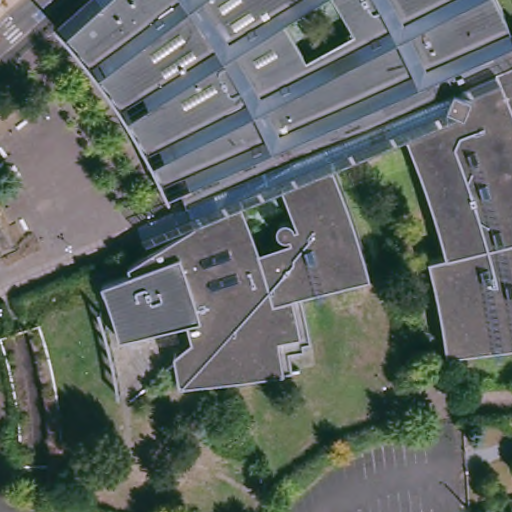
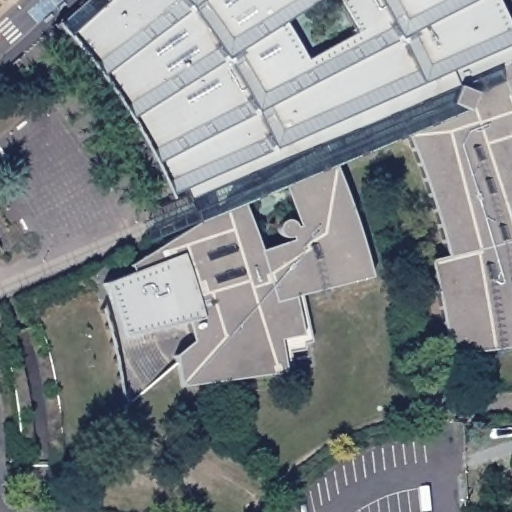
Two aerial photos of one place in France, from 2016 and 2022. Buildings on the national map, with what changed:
unchanged [(334,167),(350,211),(357,232),(371,278),(301,297),(310,342),(304,344),(305,351),(289,353),(291,372),(178,388),(172,358),(190,344),(185,325),(120,341),(111,313),(106,298),(100,285),(130,273),(127,266),(196,222),(188,202),(183,189),(193,184),(184,162),(178,166),(169,161),(159,142),(161,132),(166,129),(156,111),(146,97),(137,102),(128,100),(118,86),(110,74),(112,68),(88,39),(93,35),(89,29),(82,21),(101,3),(99,0),(316,0),(285,20),(307,57),(354,30),(336,0),(415,0),(420,141),(420,173),(405,137),(334,167)]
unchanged [(438,230),(435,219),(431,206),(426,194),(424,186),(420,173),(420,141),(415,0),(446,0),(437,30),(448,222),(444,251),(441,241),(438,230)]
unchanged [(444,251),(448,222),(437,30),(446,0),(498,0),(512,27),(512,349),(448,358),(445,333),(441,312),(430,262),(443,257),(445,257),(444,251)]
unchanged [(48,340),(51,351),(55,363),(58,377),(61,393),(63,410),(65,425),(66,437),(67,448),(67,460),(67,487),(51,485),(51,465),(26,465),(25,441),(23,423),(21,408),(18,391),(13,370),(10,357),(4,337),(17,333),(43,325),(48,340)]

